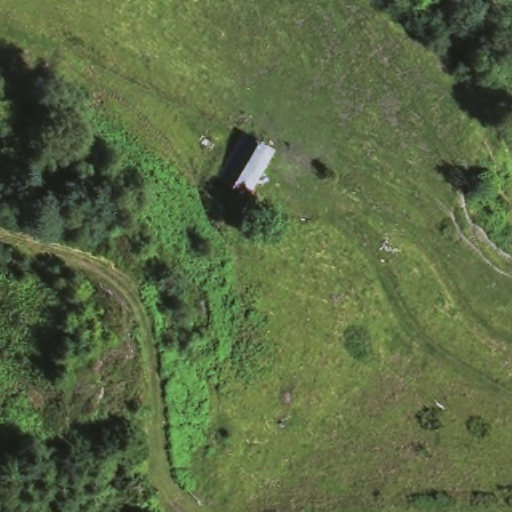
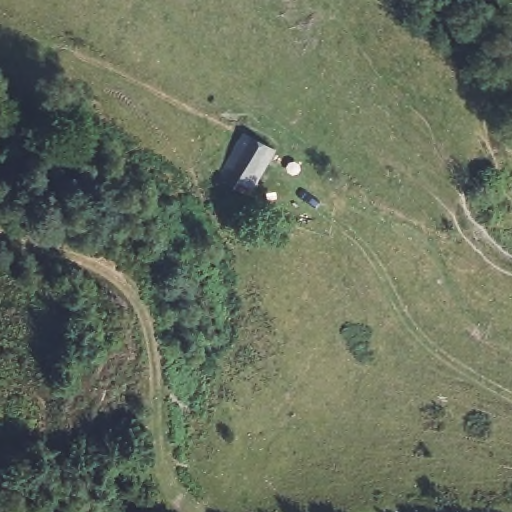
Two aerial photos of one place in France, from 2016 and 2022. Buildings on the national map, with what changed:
unchanged [(284,154),(256,194),(212,171),(243,122),(284,154)]

